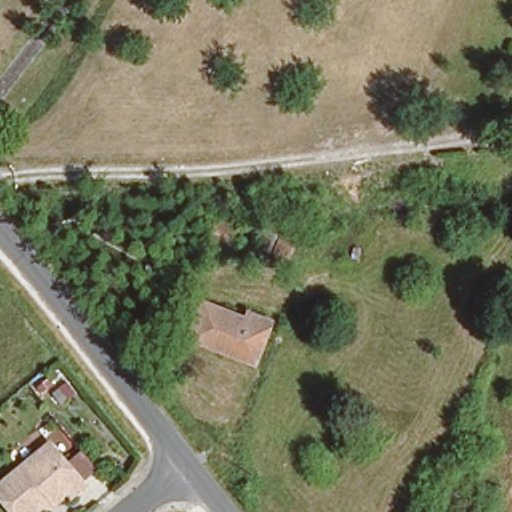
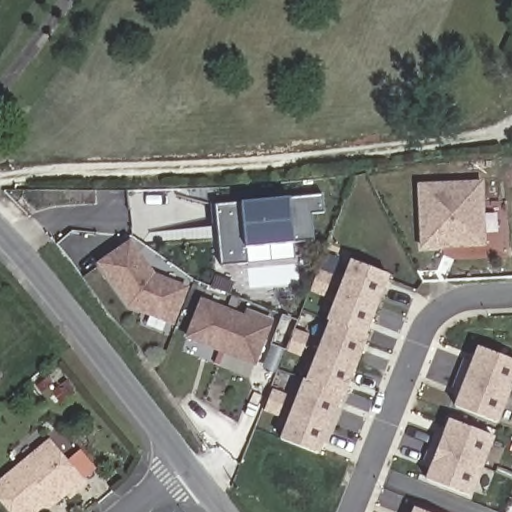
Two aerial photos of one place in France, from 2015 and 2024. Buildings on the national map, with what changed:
new [(419,250),(417,184),(484,180),(486,249),(419,250)]
new [(320,192),(322,210),(309,212),(312,239),(244,246),(246,262),(219,265),(213,203),(320,192)]
demolished [(203,244),(219,212),(248,224),(231,255),(203,244)]
new [(130,240),(155,273),(190,287),(174,325),(128,308),(96,262),(130,240)]
new [(327,320),(351,260),(388,274),(365,334),(327,320)]
unchanged [(244,361),(185,332),(201,299),(246,319),(249,310),(273,323),(261,348),(252,364),(244,361)]
new [(304,380),(327,320),(365,334),(342,394),(304,380)]
new [(496,422),(456,406),(478,348),(512,360),(512,380),(496,422)]
new [(281,439),(304,380),(342,394),(318,454),(281,439)]
new [(470,494),(428,479),(450,419),(492,436),(470,494)]
unchanged [(21,512),(9,512),(0,501),(0,476),(46,438),(82,481),(69,492),(65,487),(50,499),(44,493),(21,512)]
new [(415,509),(424,512),(414,512),(415,509)]

